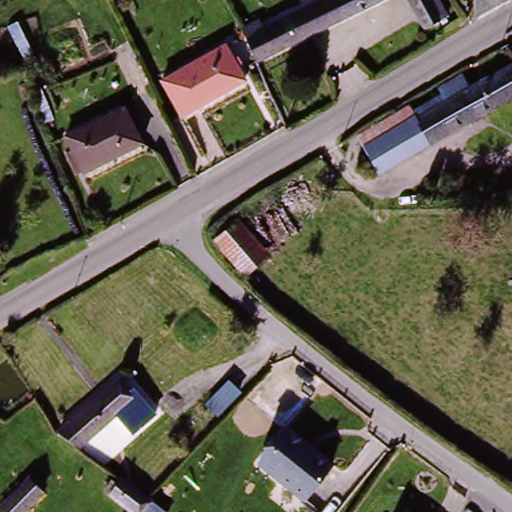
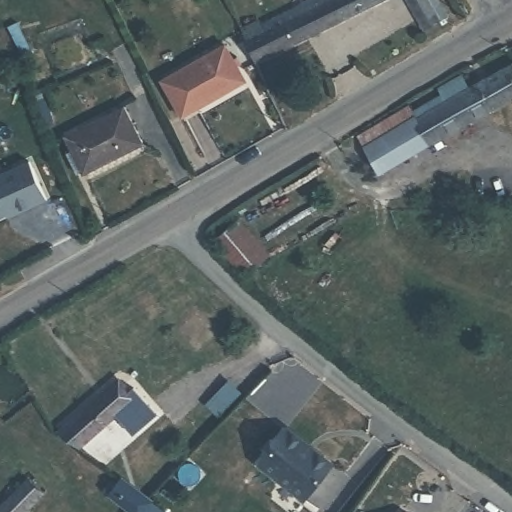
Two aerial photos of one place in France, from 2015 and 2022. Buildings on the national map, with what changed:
unchanged [(327,0),(375,0),(256,65),(244,45),(327,0)]
unchanged [(424,0),(436,21),(422,30),(403,0),(424,0)]
unchanged [(241,88),(183,121),(163,87),(221,54),(241,88)]
unchanged [(512,65),(512,98),(484,113),(373,172),(359,146),(512,64),(512,65)]
unchanged [(82,174),(62,139),(120,106),(140,141),(82,174)]
new [(29,160),(48,200),(9,219),(7,214),(0,217),(0,174),(29,160)]
unchanged [(244,278),(243,274),(218,235),(243,220),(270,263),(246,278),(245,278),(244,278)]
unchanged [(219,419),(206,405),(228,383),(241,395),(219,419)]
unchanged [(49,438),(116,388),(126,402),(133,397),(153,423),(128,442),(112,423),(75,451),(49,438)]
unchanged [(304,504),(263,468),(286,438),(291,433),(318,454),(334,469),(304,504)]
unchanged [(151,504),(161,512),(126,512),(97,491),(101,486),(106,479),(113,484),(115,485),(120,479),(151,504)]
unchanged [(30,483),(41,496),(22,512),(0,512),(0,509),(30,483)]

